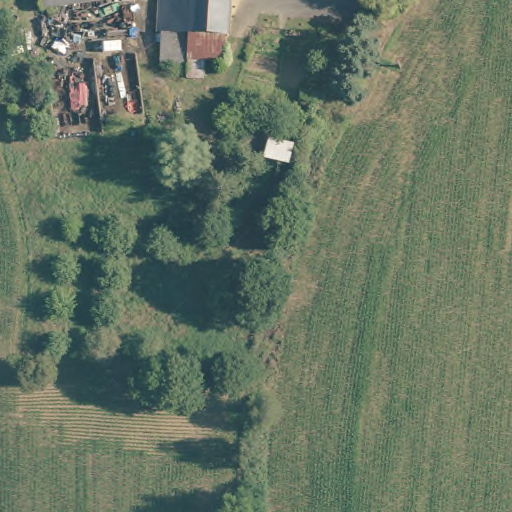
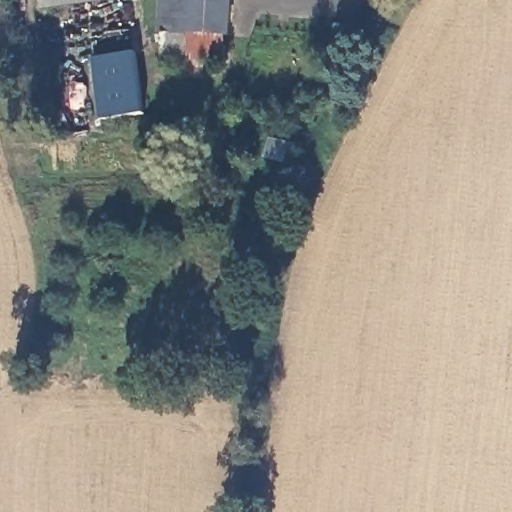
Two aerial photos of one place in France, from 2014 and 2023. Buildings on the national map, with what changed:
new [(40,0),(121,0),(41,10),(40,0)]
unchanged [(163,53),(164,28),(164,0),(231,0),(229,31),(229,57),(189,54),(163,53)]
new [(90,59),(139,52),(147,113),(98,121),(90,59)]

